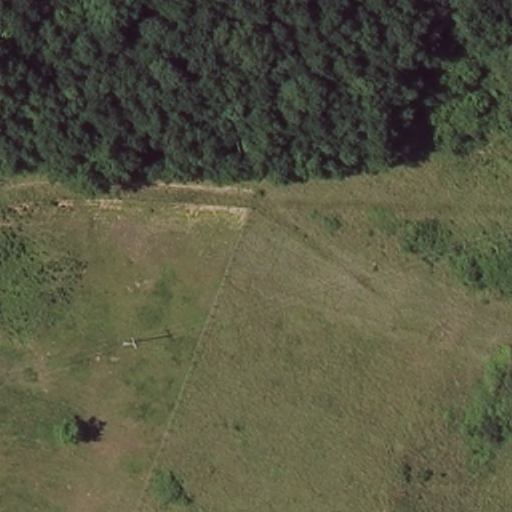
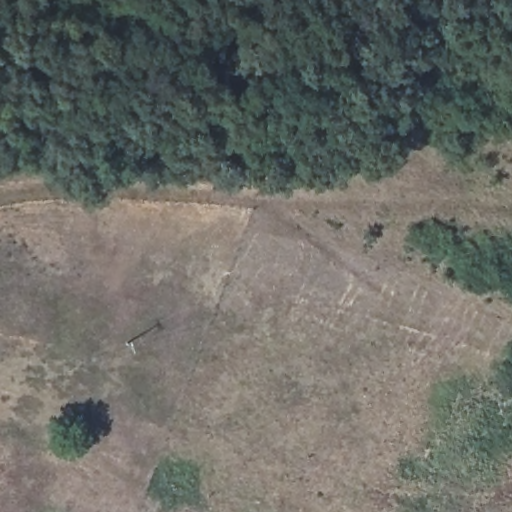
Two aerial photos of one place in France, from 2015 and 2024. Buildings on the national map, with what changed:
[]

